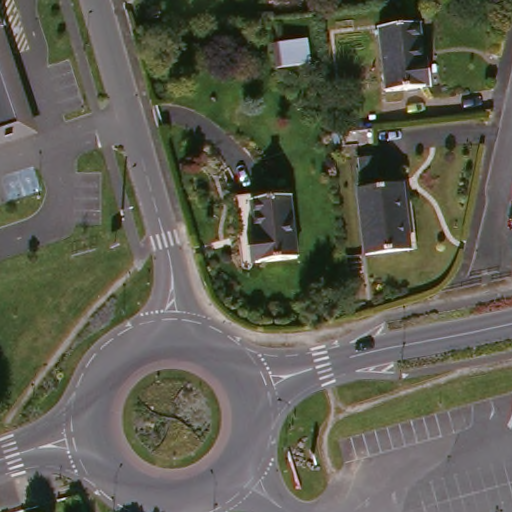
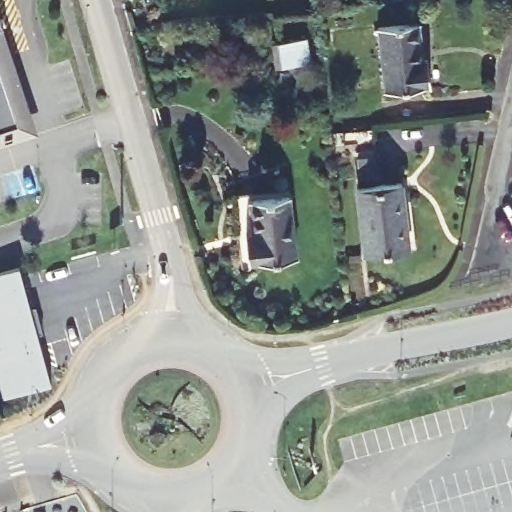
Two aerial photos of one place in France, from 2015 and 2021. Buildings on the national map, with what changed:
unchanged [(0,31),(0,16),(4,30),(0,31)]
unchanged [(437,83),(386,87),(385,68),(380,69),(375,31),(422,26),(425,61),(435,61),(437,83)]
unchanged [(307,35),(312,62),(282,67),(278,40),(307,35)]
unchanged [(0,70),(17,129),(0,134),(0,70)]
unchanged [(360,193),(402,189),(411,250),(368,256),(360,193)]
unchanged [(249,193),(270,192),(270,197),(302,194),(309,255),(257,262),(249,193)]
new [(50,387),(2,399),(0,394),(0,274),(19,268),(50,387)]

